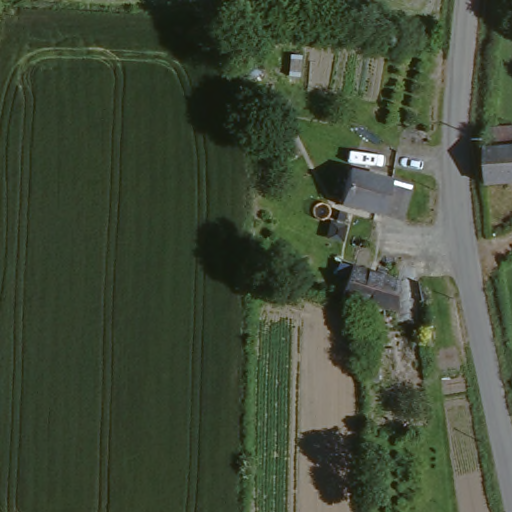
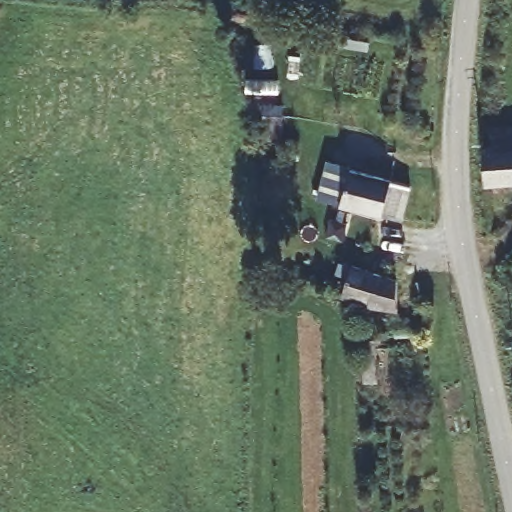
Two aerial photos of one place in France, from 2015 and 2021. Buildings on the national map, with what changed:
unchanged [(512,150),(512,187),(489,189),(473,190),(472,152),(487,152),(512,150)]
unchanged [(350,174),(410,189),(402,222),(383,217),(381,220),(362,216),(340,211),(350,174)]
unchanged [(393,318),(365,313),(354,312),(349,308),(340,307),(347,272),(391,288),(393,312),(393,318)]

